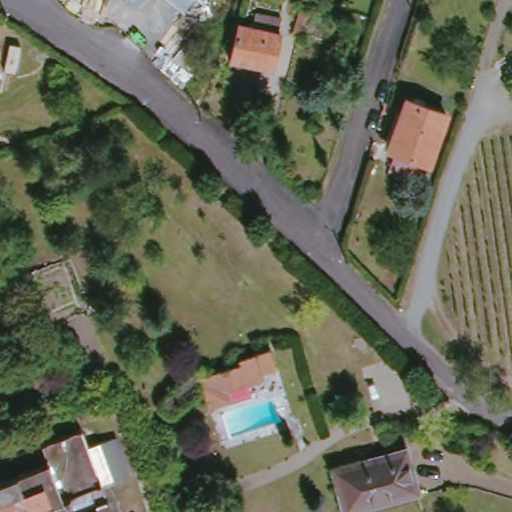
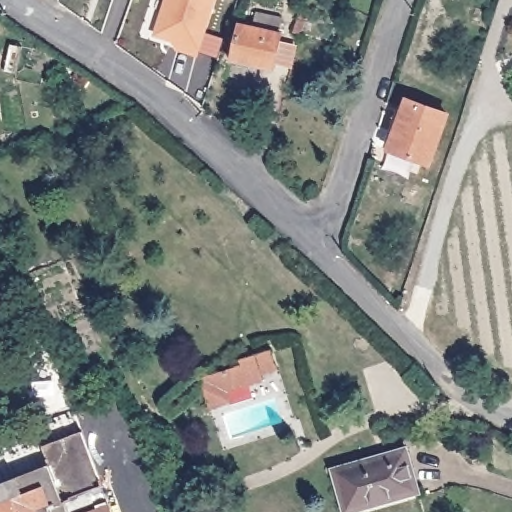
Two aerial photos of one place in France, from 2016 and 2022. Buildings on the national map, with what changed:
new [(216,0),(198,57),(178,52),(172,41),(153,35),(164,0),(216,0)]
unchanged [(275,69),(234,57),(243,24),(283,35),(275,69)]
unchanged [(387,151),(402,101),(442,114),(425,164),(387,151)]
unchanged [(255,373),(259,382),(222,393),(225,405),(207,408),(198,376),(239,362),(237,356),(266,349),(272,368),(255,373)]
unchanged [(45,466),(38,444),(82,430),(87,445),(98,442),(112,479),(99,484),(110,512),(0,512),(0,481),(45,466)]
unchanged [(401,450),(412,491),(342,511),(330,470),(401,450)]

